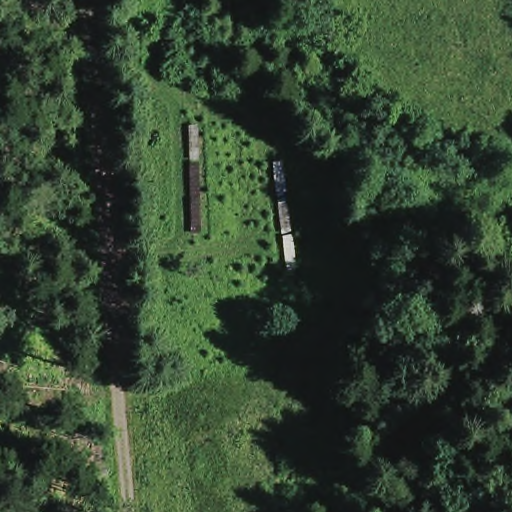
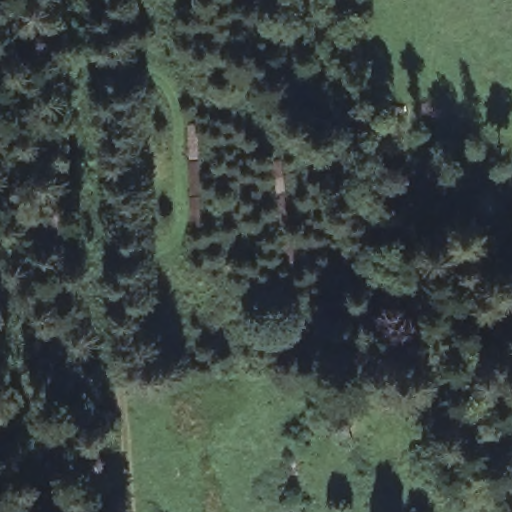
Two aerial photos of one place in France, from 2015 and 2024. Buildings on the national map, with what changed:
unchanged [(204,130),(205,236),(190,235),(190,130),(204,130)]
unchanged [(273,165),(287,166),(298,274),(287,276),(273,165)]

